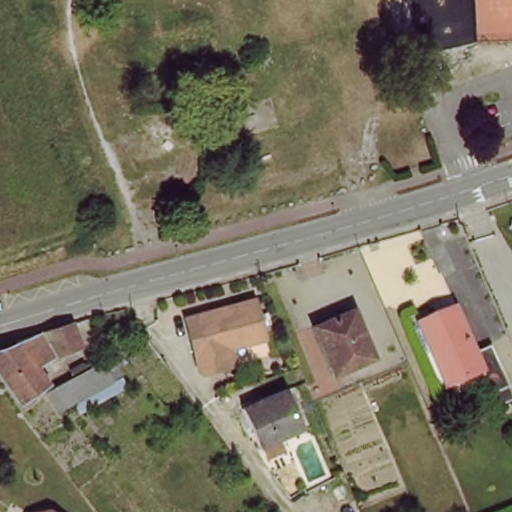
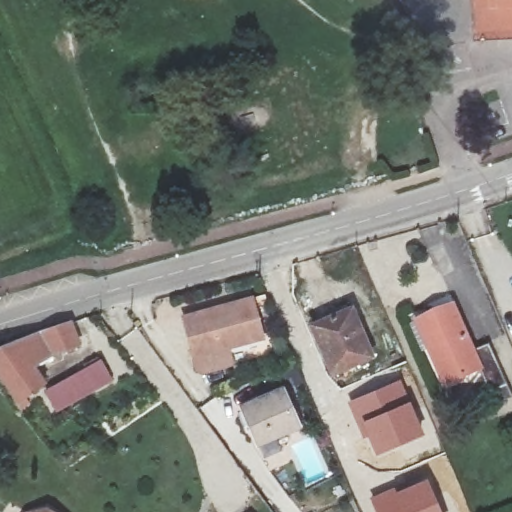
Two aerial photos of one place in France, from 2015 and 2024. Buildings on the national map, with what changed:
unchanged [(235,350),(240,367),(211,375),(205,372),(191,320),(260,301),(269,334),(271,340),(235,350)]
unchanged [(373,361),(336,373),(320,326),(358,313),(373,361)]
unchanged [(469,357),(488,351),(505,392),(487,398),(477,374),(445,385),(420,324),(452,314),(469,357)]
unchanged [(33,364),(46,386),(22,401),(0,370),(0,345),(69,323),(78,344),(33,364)]
unchanged [(120,368),(111,373),(116,382),(98,392),(62,412),(48,389),(105,359),(113,355),(120,368)]
new [(400,379),(424,435),(374,456),(365,437),(363,438),(346,400),(400,379)]
unchanged [(302,428),(258,447),(242,409),(286,389),(302,428)]
new [(396,490),(426,477),(441,512),(375,512),(368,497),(394,486),(396,490)]

